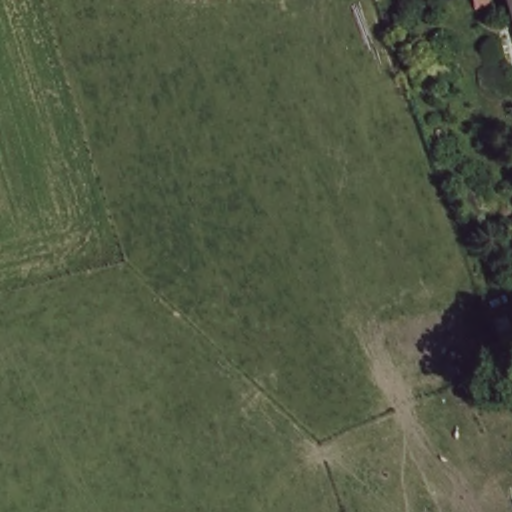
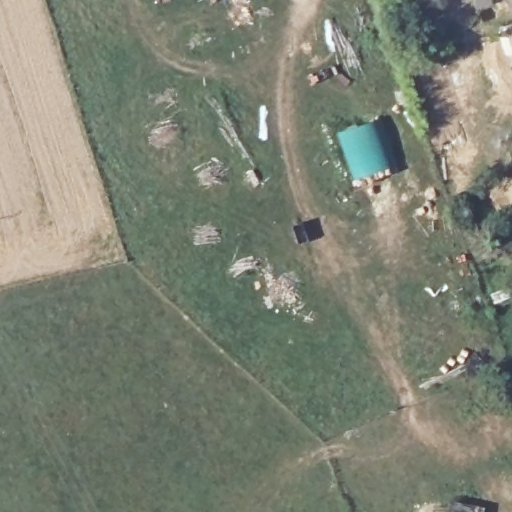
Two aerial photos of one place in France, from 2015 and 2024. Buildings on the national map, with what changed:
unchanged [(512,19),(512,34),(506,21),(512,19)]
new [(340,132),(381,118),(395,165),(356,179),(340,132)]

